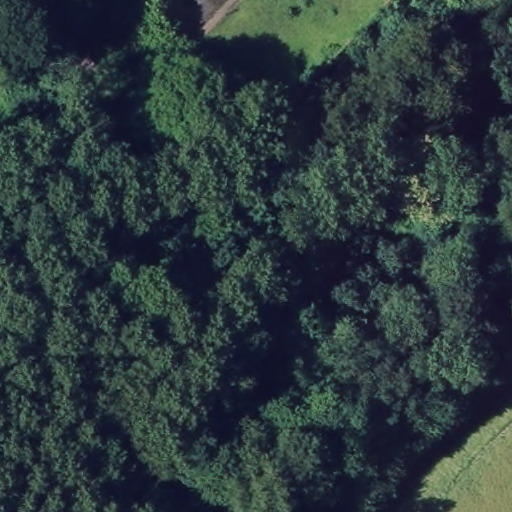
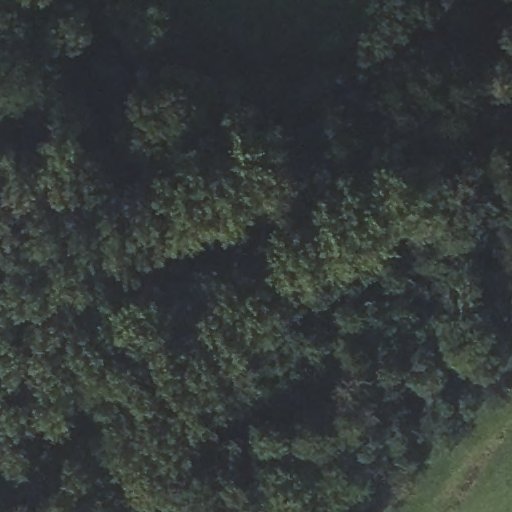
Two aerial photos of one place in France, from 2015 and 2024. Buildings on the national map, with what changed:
unchanged [(271,136),(261,127),(278,111),(286,119),(271,136)]

